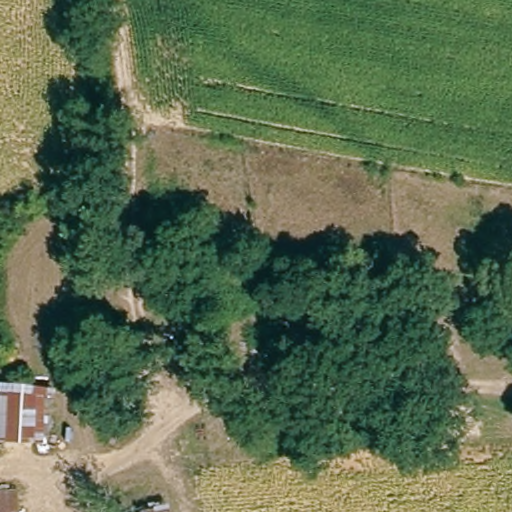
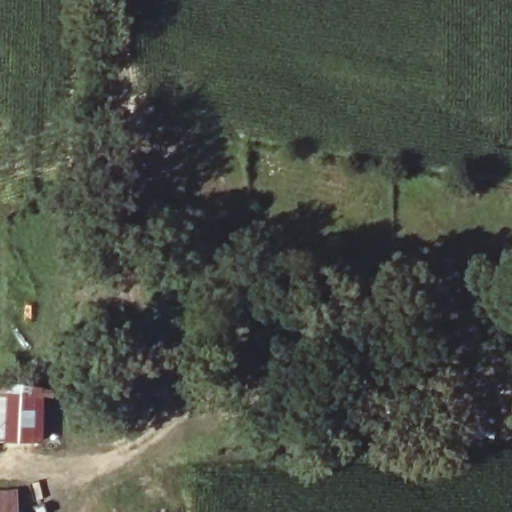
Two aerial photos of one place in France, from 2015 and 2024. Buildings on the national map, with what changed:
unchanged [(51,389),(48,444),(0,442),(0,407),(1,384),(51,389)]
unchanged [(20,490),(22,512),(0,512),(0,492),(20,490)]
unchanged [(141,512),(169,505),(170,512),(141,512)]

